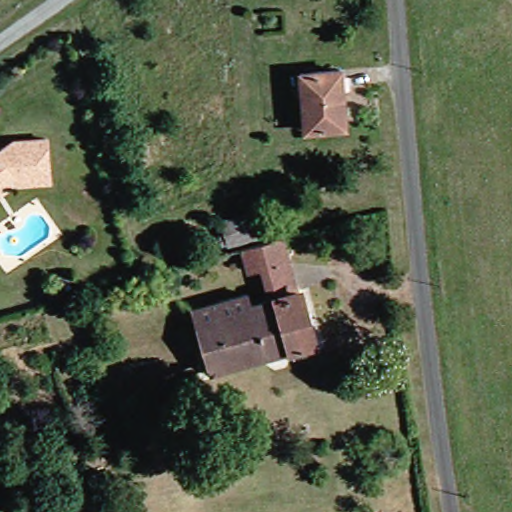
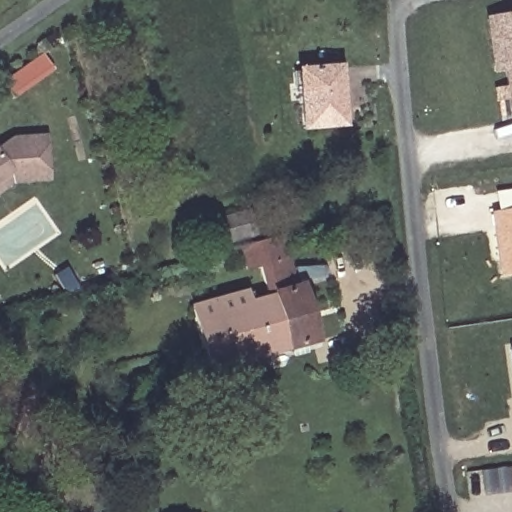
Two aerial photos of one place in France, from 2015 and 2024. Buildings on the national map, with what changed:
new [(512,17),(512,111),(505,113),(496,69),(485,71),(479,21),(512,17)]
unchanged [(345,129),(312,133),(305,73),(338,69),(345,129)]
unchanged [(50,140),(54,183),(17,187),(0,199),(0,150),(13,141),(50,140)]
unchanged [(247,221),(211,230),(204,209),(240,198),(247,221)]
new [(487,211),(512,207),(512,274),(497,277),(487,211)]
unchanged [(272,237),(292,295),(297,293),(313,345),(209,372),(193,311),(242,296),(247,309),(263,303),(254,274),(242,277),(231,249),(272,237)]
new [(507,349),(512,348),(512,382),(507,349)]
new [(507,469),(510,487),(482,491),(479,473),(507,469)]

